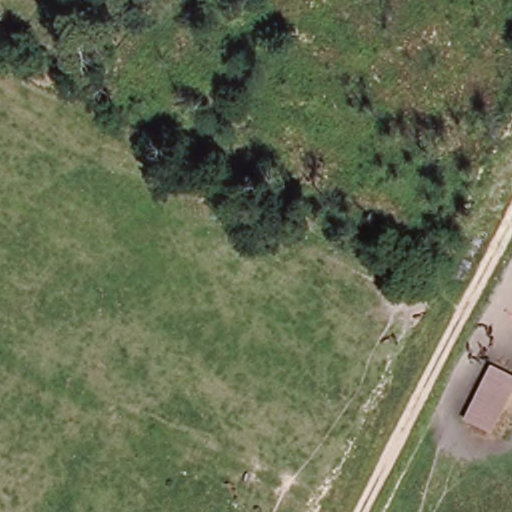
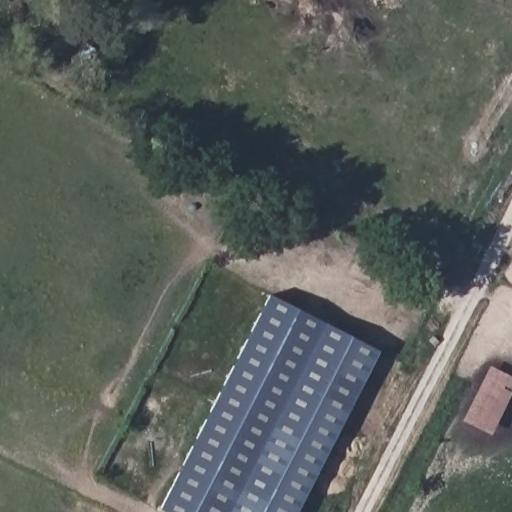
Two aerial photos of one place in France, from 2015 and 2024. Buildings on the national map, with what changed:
new [(376,352),(296,512),(165,512),(159,509),(268,296),(376,352)]
unchanged [(488,433),(462,420),(491,363),(512,375),(512,388),(488,433)]

